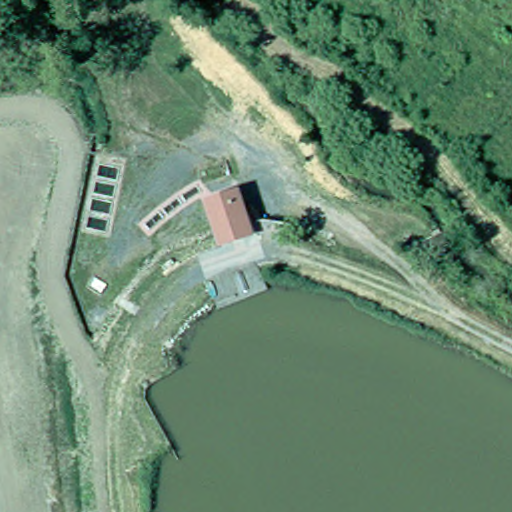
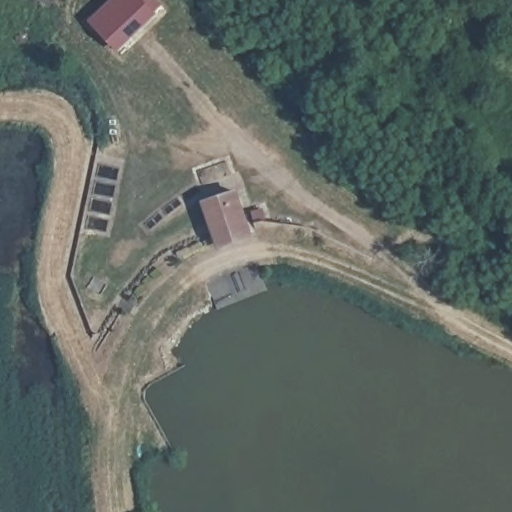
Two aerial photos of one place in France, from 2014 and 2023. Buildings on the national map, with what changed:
new [(91,20),(112,0),(147,0),(160,13),(119,50),(91,20)]
unchanged [(201,199),(239,186),(254,233),(217,246),(201,199)]

